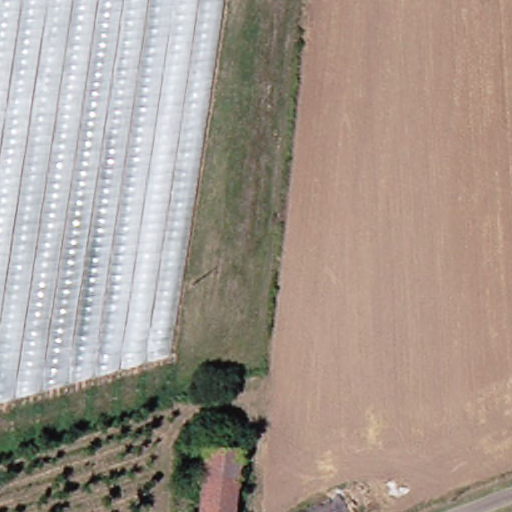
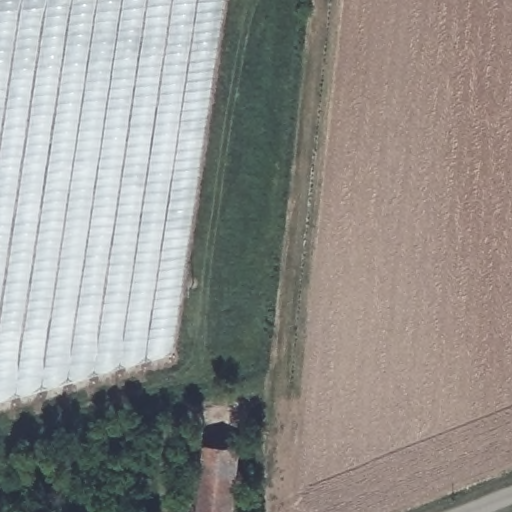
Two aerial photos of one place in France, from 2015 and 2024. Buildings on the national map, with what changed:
unchanged [(0,398),(0,0),(220,0),(171,352),(0,398)]
unchanged [(238,512),(202,512),(209,446),(246,449),(238,512)]

